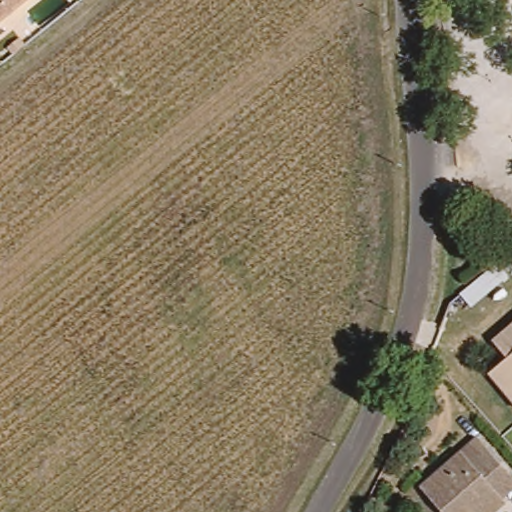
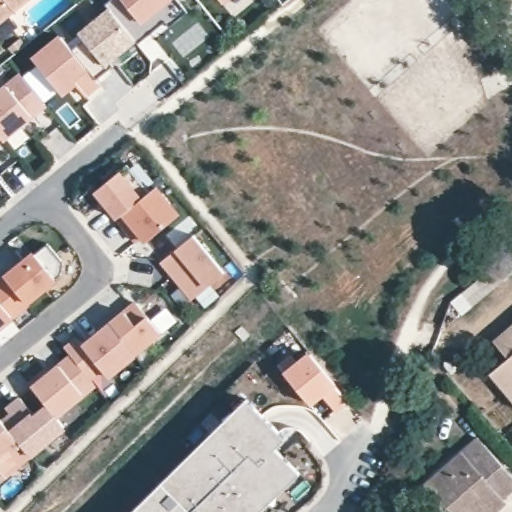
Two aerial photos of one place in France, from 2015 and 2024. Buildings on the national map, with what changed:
unchanged [(38,0),(0,30),(0,0),(38,0)]
new [(83,34),(80,31),(110,6),(106,0),(181,0),(188,8),(170,23),(166,18),(152,30),(139,40),(135,36),(110,57),(114,62),(97,76),(100,80),(85,92),(72,76),(59,86),(34,56),(62,33),(71,44),(83,34)]
new [(217,0),(228,0),(222,5),(217,0)]
new [(21,71),(46,100),(3,135),(0,132),(0,88),(21,71)]
new [(118,215),(96,187),(128,161),(150,188),(156,183),(179,212),(147,238),(144,233),(138,238),(118,215)]
new [(195,231),(226,268),(195,294),(164,257),(195,231)]
new [(49,239),(64,259),(63,271),(28,300),(7,274),(49,239)]
unchanged [(512,252),(512,257),(510,254),(512,252)]
new [(7,274),(28,300),(30,302),(0,326),(0,279),(7,274)]
new [(6,423),(15,416),(9,408),(23,397),(39,416),(51,406),(32,383),(48,370),(51,374),(74,355),(67,348),(80,338),(86,345),(138,301),(162,331),(136,352),(137,353),(110,376),(103,367),(91,377),(96,383),(57,414),(66,425),(4,476),(0,471),(0,416),(6,423)]
unchanged [(502,362),(489,346),(512,327),(512,410),(485,378),(502,362)]
new [(154,498),(172,481),(233,420),(257,397),(265,405),(282,426),(288,433),(277,442),(305,475),(282,497),(267,512),(140,512),(154,498)]
unchanged [(458,458),(474,444),(484,455),(512,487),(512,488),(497,502),(502,509),(500,512),(435,512),(418,493),(458,458)]

